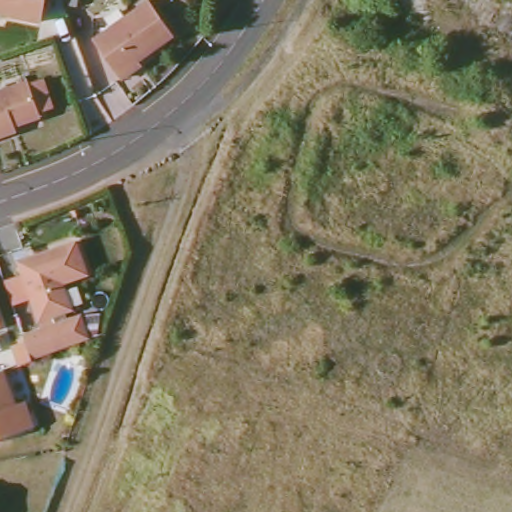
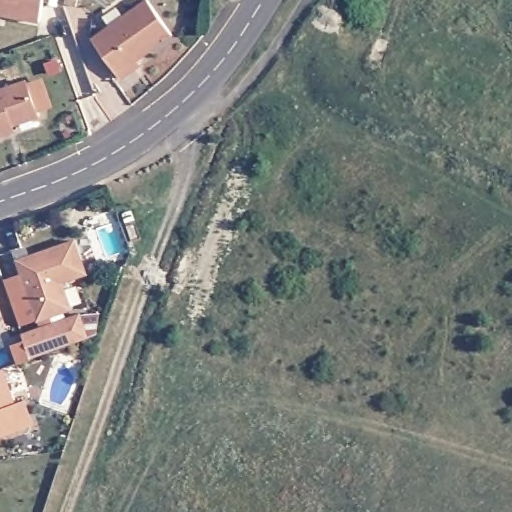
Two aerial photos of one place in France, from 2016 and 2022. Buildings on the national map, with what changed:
unchanged [(41,22),(3,15),(0,14),(0,0),(45,0),(41,22)]
unchanged [(132,67),(119,77),(92,37),(147,0),(148,0),(172,36),(137,59),(139,63),(132,67)]
unchanged [(44,81),(52,104),(38,109),(40,115),(9,126),(10,132),(0,135),(0,90),(28,80),(30,86),(44,81)]
unchanged [(27,344),(24,336),(41,330),(56,325),(54,318),(40,323),(19,263),(77,244),(89,277),(64,286),(73,312),(65,314),(68,321),(72,318),(82,344),(50,356),(34,362),(20,366),(15,348),(27,344)]
unchanged [(0,323),(0,317),(2,322),(0,323)]
unchanged [(11,392),(20,388),(30,413),(0,425),(0,373),(4,372),(11,392)]

